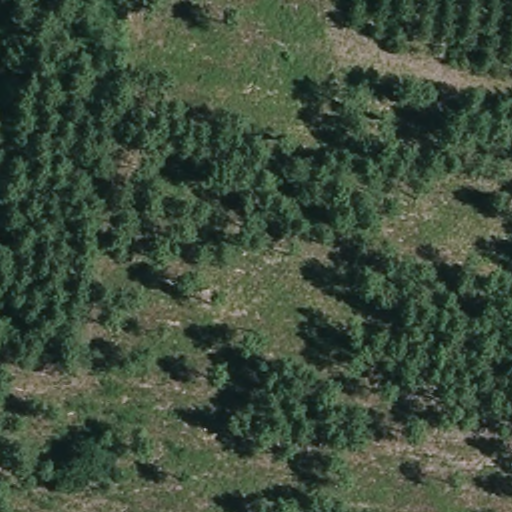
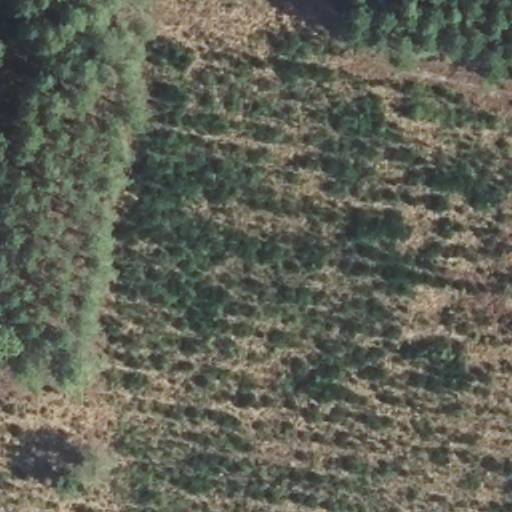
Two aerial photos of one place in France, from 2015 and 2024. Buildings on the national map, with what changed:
[]

